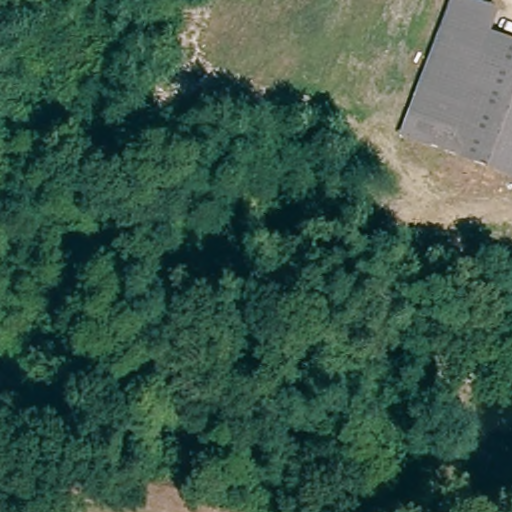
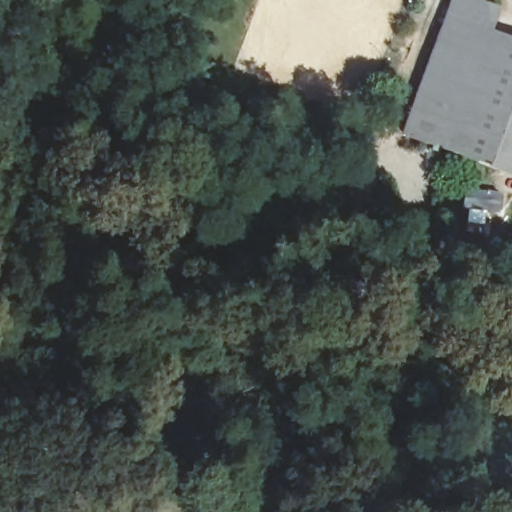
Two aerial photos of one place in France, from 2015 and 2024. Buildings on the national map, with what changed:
unchanged [(502,14),(494,38),(512,45),(512,106),(428,70),(454,0),(466,0),(502,14)]
unchanged [(512,182),(403,136),(428,70),(512,106),(512,182)]

